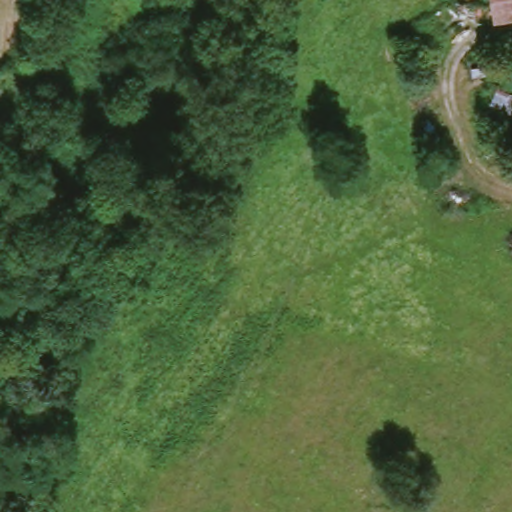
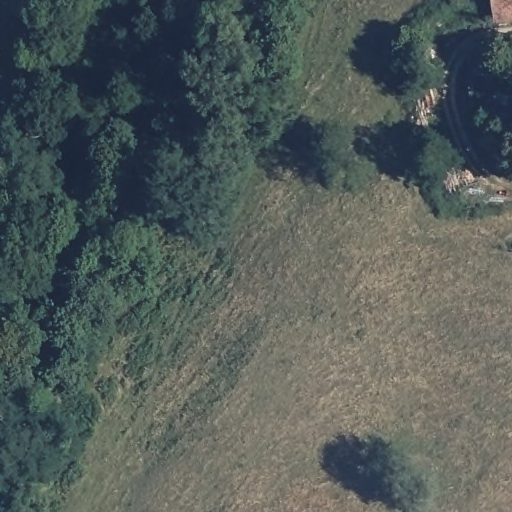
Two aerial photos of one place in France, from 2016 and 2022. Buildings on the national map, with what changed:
unchanged [(497,20),(495,0),(512,0),(512,19),(497,20)]
unchanged [(485,117),(493,97),(507,105),(512,94),(512,132),(485,117)]

